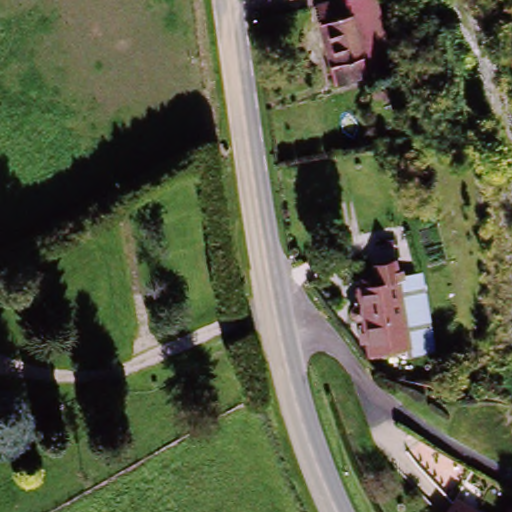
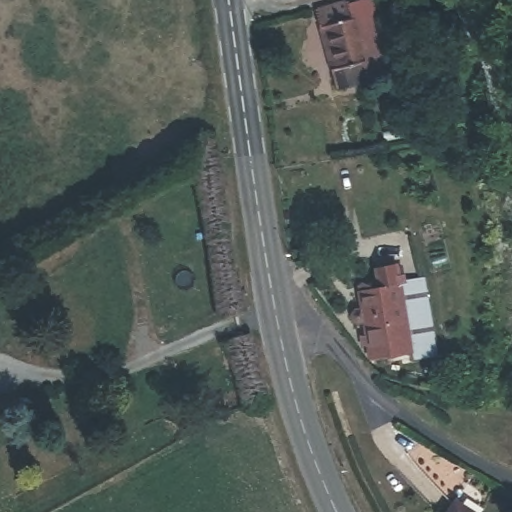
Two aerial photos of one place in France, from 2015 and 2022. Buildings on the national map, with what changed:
unchanged [(335,71),(345,68),(335,32),(325,34),(318,9),(349,0),(358,0),(380,80),(340,92),(335,71)]
unchanged [(358,0),(385,0),(405,72),(380,80),(358,0)]
unchanged [(350,303),(370,298),(367,285),(393,280),(397,295),(412,352),(368,362),(361,332),(347,336),(344,317),(352,315),(350,303)]
unchanged [(436,365),(416,368),(412,352),(397,295),(419,291),(436,365)]

